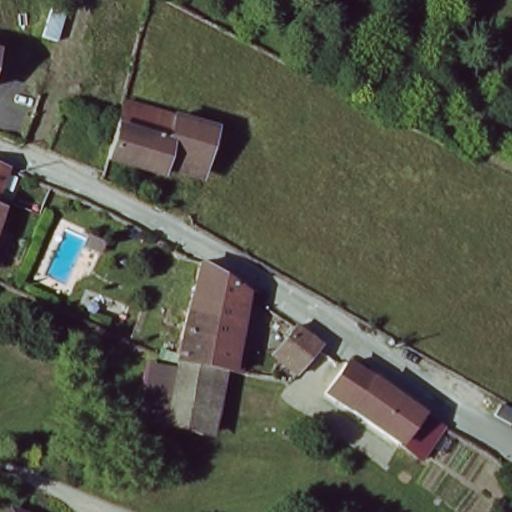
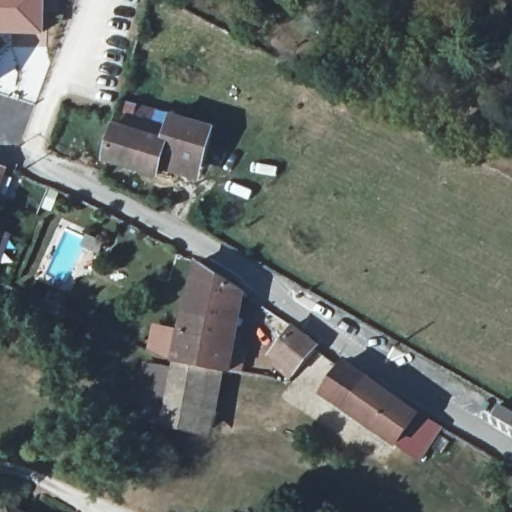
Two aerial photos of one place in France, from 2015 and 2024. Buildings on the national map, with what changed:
new [(45,33),(0,33),(0,0),(47,0),(45,33)]
unchanged [(0,56),(7,57),(3,75),(0,74),(0,56)]
unchanged [(204,168),(163,157),(157,176),(105,161),(120,105),(216,130),(204,168)]
unchanged [(0,197),(0,164),(11,168),(0,197)]
unchanged [(0,220),(0,209),(3,210),(0,220)]
unchanged [(213,368),(176,361),(188,310),(202,261),(245,288),(226,349),(236,352),(229,371),(213,368)]
unchanged [(320,343),(295,376),(270,359),(292,325),(320,343)]
unchanged [(197,433),(166,422),(176,361),(213,368),(200,434),(197,433)]
unchanged [(393,443),(321,393),(345,361),(415,412),(393,443)]
unchanged [(215,440),(200,434),(213,368),(229,371),(215,440)]
unchanged [(497,403),(512,412),(512,417),(508,424),(491,415),(497,403)]
unchanged [(415,412),(439,425),(415,459),(393,443),(415,412)]
unchanged [(28,512),(6,512),(10,504),(28,512)]

